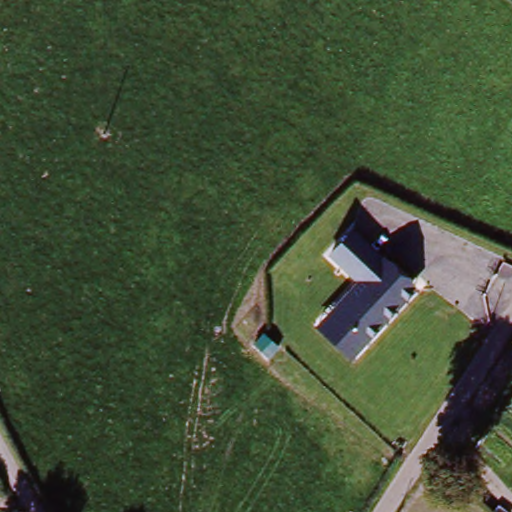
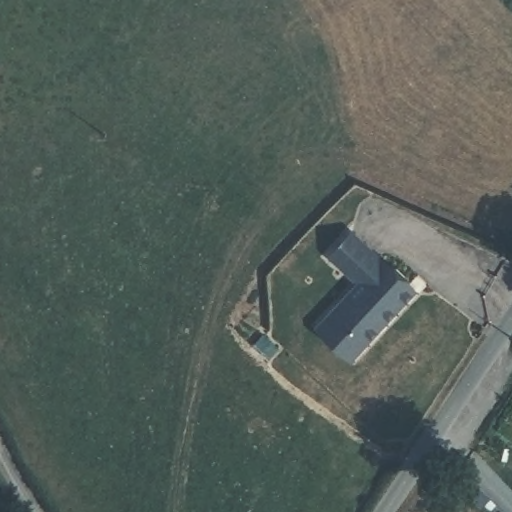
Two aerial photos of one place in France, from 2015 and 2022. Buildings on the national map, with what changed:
unchanged [(419,291),(351,365),(311,328),(356,285),(324,256),(349,230),(419,291)]

